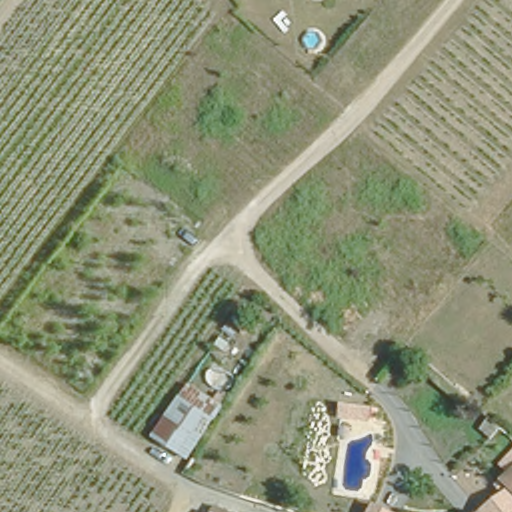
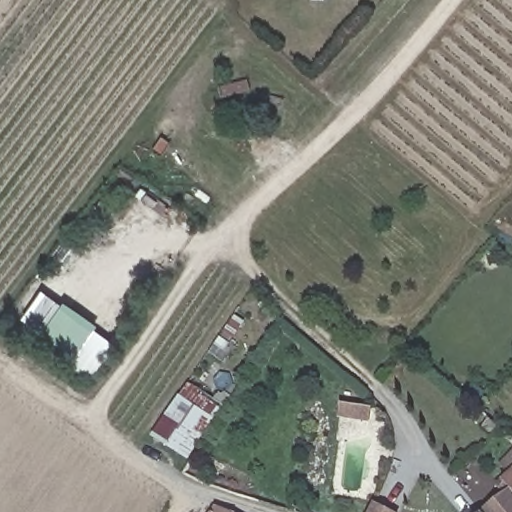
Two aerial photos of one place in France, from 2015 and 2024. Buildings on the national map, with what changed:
new [(117,346),(94,374),(24,317),(44,292),(63,307),(67,301),(100,328),(97,330),(117,346)]
unchanged [(157,421),(183,383),(201,394),(215,404),(189,442),(174,433),(157,421)]
unchanged [(497,498),(508,489),(502,482),(508,474),(499,467),(512,453),(512,512),(479,512),(497,498)]
unchanged [(375,499),(399,512),(368,512),(375,499)]
unchanged [(216,512),(222,504),(235,512),(216,512)]
unchanged [(239,510),(242,512),(238,512),(239,510)]

